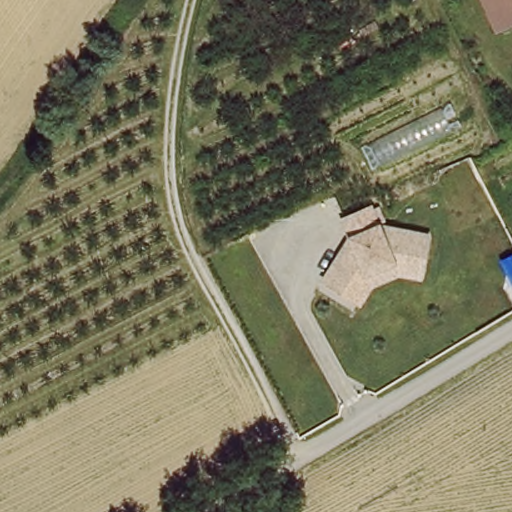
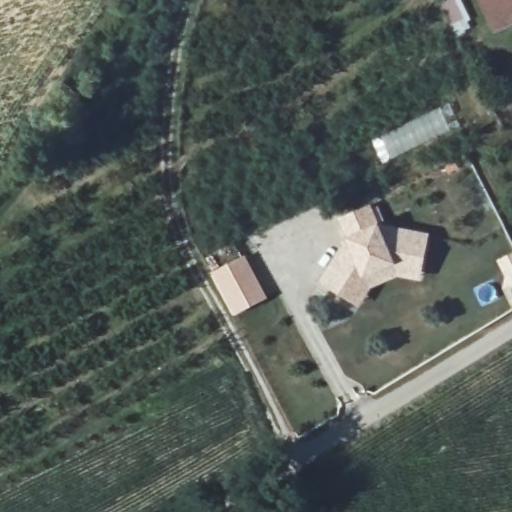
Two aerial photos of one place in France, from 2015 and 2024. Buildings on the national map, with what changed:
unchanged [(483,0),(512,0),(512,10),(493,19),(483,0)]
unchanged [(326,279),(352,236),(345,218),(372,206),(373,209),(379,207),(383,218),(378,220),(380,224),(429,233),(423,264),(421,274),(396,269),(374,279),(361,301),(352,295),(326,279)]
new [(245,262),(265,304),(230,323),(206,281),(245,262)]

